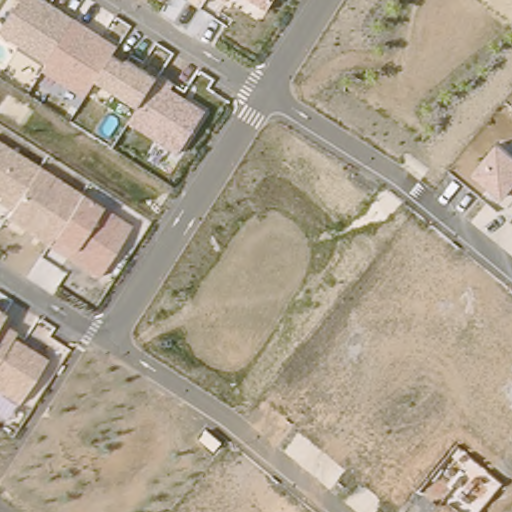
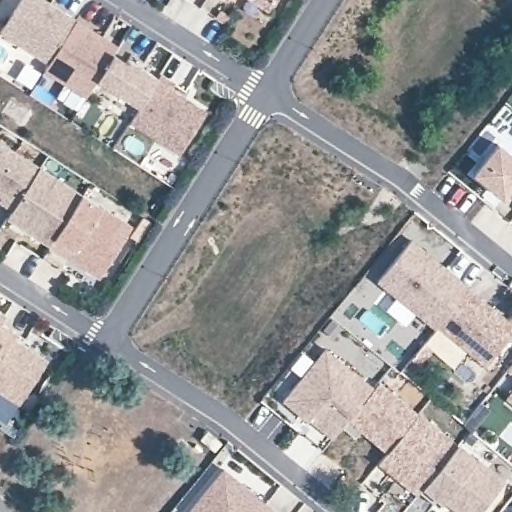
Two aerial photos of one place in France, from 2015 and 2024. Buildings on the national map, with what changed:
unchanged [(130,120),(139,107),(97,81),(85,97),(45,72),(49,64),(1,31),(21,0),(46,0),(119,47),(114,55),(126,62),(129,59),(159,77),(162,73),(176,82),(172,89),(205,110),(180,154),(130,120)]
unchanged [(253,0),(274,0),(268,10),(253,0)]
unchanged [(49,244),(10,218),(14,211),(0,202),(0,142),(87,195),(106,207),(133,225),(100,277),(49,244)]
unchanged [(504,196),(474,173),(498,142),(512,155),(512,188),(504,196)]
new [(374,305),(387,290),(378,282),(410,244),(437,265),(434,270),(440,275),(443,271),(469,291),(436,330),(417,315),(404,330),(374,305)]
new [(469,291),(512,327),(512,337),(485,370),(436,330),(469,291)]
unchanged [(0,391),(0,311),(7,315),(3,321),(19,332),(14,338),(49,359),(18,403),(0,391)]
new [(422,489),(416,493),(379,463),(387,454),(360,431),(354,437),(343,427),(333,439),(309,418),(307,421),(282,400),(325,348),(376,388),(380,382),(459,446),(422,489)]
unchanged [(477,512),(461,512),(446,498),(441,503),(422,489),(459,446),(503,484),(477,512)]
new [(223,465),(279,512),(191,512),(191,511),(190,512),(184,512),(187,508),(223,465)]

